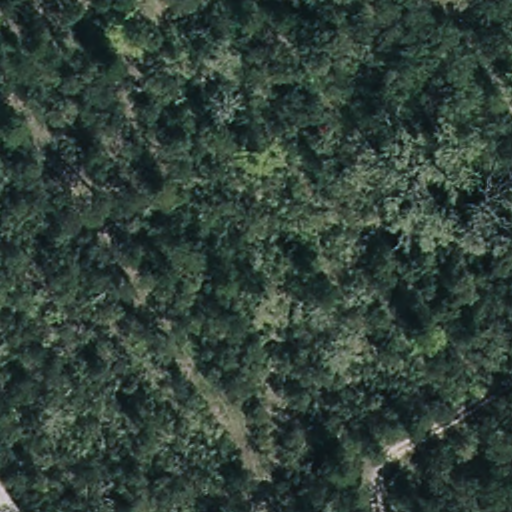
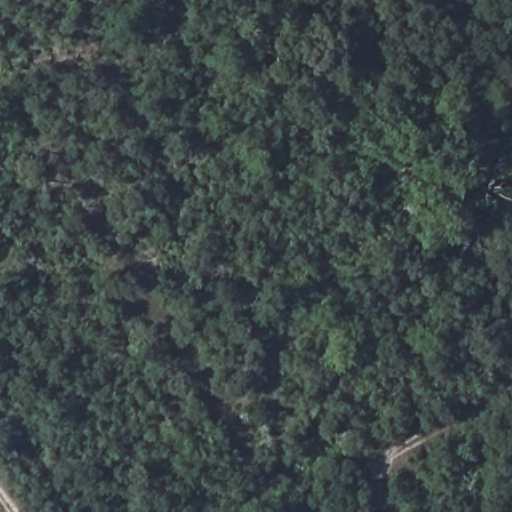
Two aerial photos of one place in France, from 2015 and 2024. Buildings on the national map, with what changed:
[]

